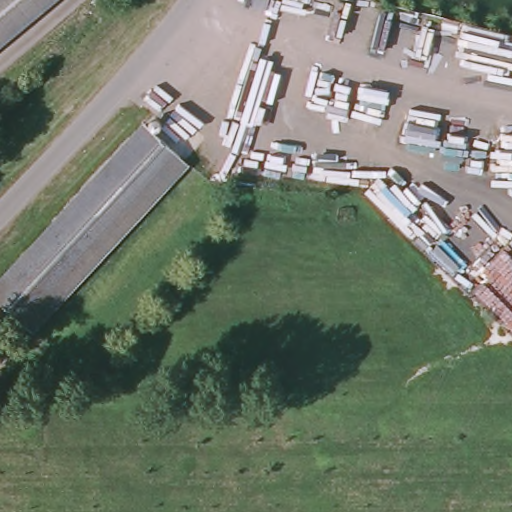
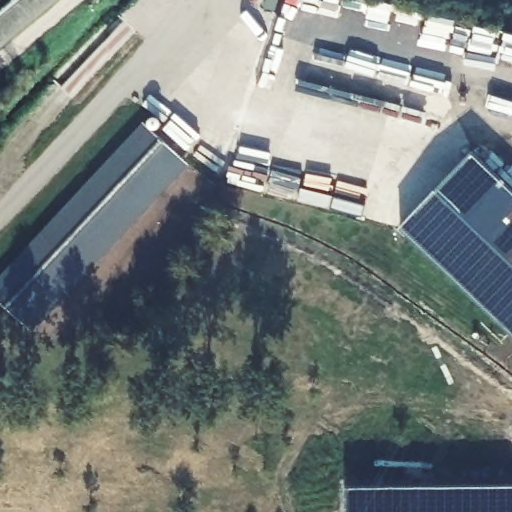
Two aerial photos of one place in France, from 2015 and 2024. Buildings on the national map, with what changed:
unchanged [(45,0),(0,39),(0,0),(45,0)]
new [(294,0),(304,0),(303,3),(294,0)]
unchanged [(0,310),(0,275),(137,125),(152,139),(172,158),(98,239),(17,327),(0,310)]
new [(512,333),(397,226),(470,149),(512,188),(512,333)]
unchanged [(98,239),(172,158),(180,164),(79,274),(25,333),(17,327),(98,239)]
new [(512,486),(512,512),(347,512),(347,488),(512,486)]

